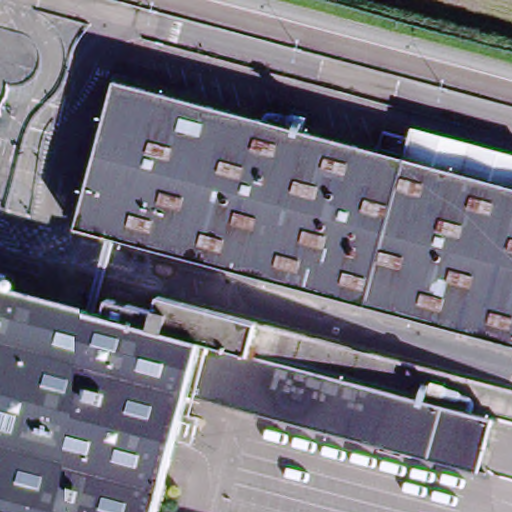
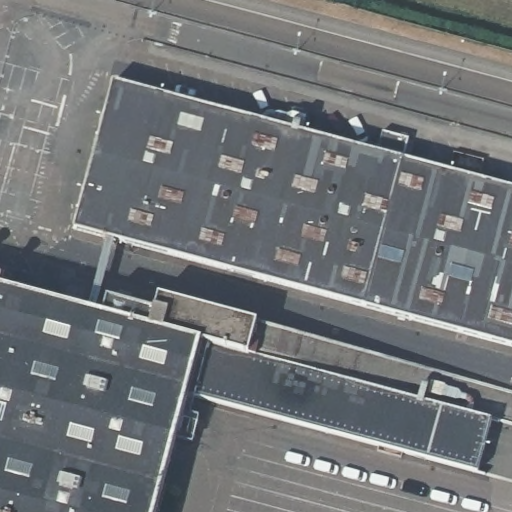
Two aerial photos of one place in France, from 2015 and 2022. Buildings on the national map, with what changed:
unchanged [(110,85),(181,104),(188,72),(228,84),(220,115),(512,193),(512,350),(71,232),(110,85)]
unchanged [(54,300),(60,276),(80,271),(90,303),(88,308),(104,313),(202,341),(188,395),(157,512),(0,512),(0,285),(54,300)]
unchanged [(104,313),(107,298),(155,311),(160,296),(258,322),(250,352),(492,418),(492,420),(483,452),(478,470),(188,395),(202,341),(104,313)]

